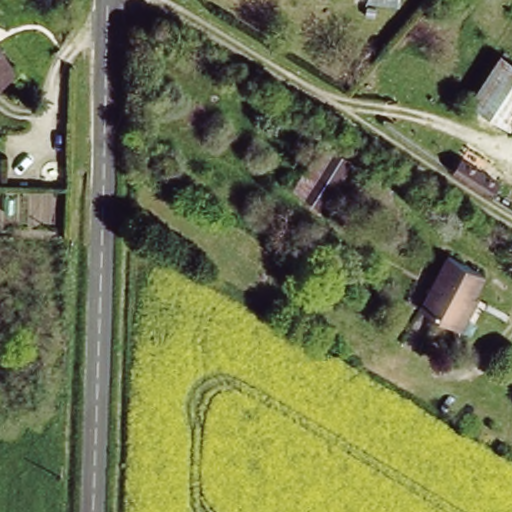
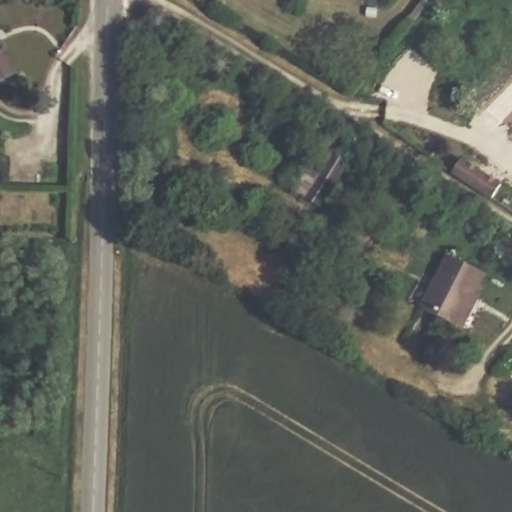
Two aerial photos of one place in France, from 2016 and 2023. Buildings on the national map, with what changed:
unchanged [(0,84),(0,37),(23,60),(0,84)]
unchanged [(475,104),(472,102),(460,94),(478,65),(466,56),(478,39),(490,47),(503,55),(512,61),(512,123),(510,126),(508,125),(500,138),(467,116),(475,104)]
unchanged [(345,165),(315,213),(290,197),(318,149),(345,165)]
unchanged [(512,184),(501,201),(492,195),(455,171),(463,156),(501,181),(503,178),(512,184)]
unchanged [(453,322),(422,302),(453,254),(488,276),(475,296),(457,325),(453,322)]

